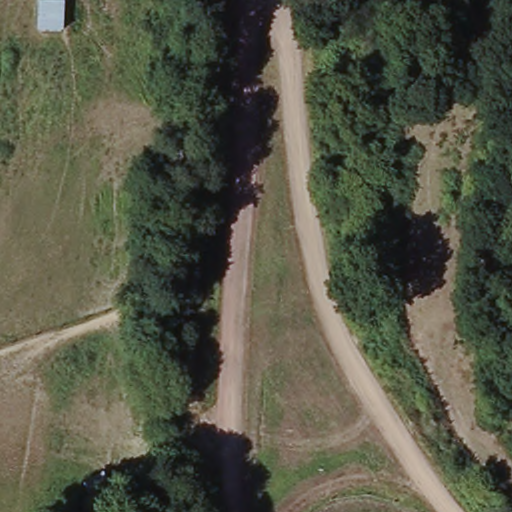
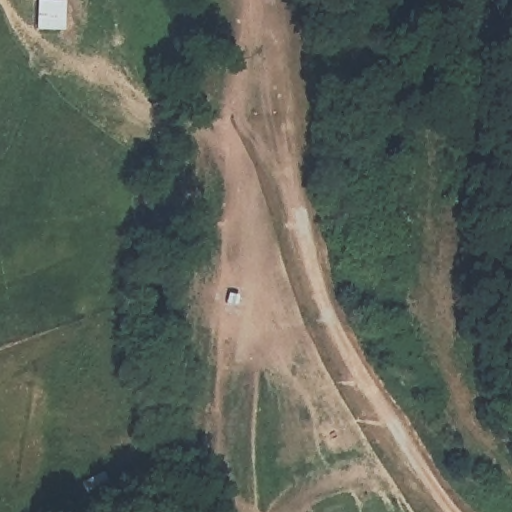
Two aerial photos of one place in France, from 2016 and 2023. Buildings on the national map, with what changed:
unchanged [(67,32),(39,31),(39,0),(65,1),(67,32)]

